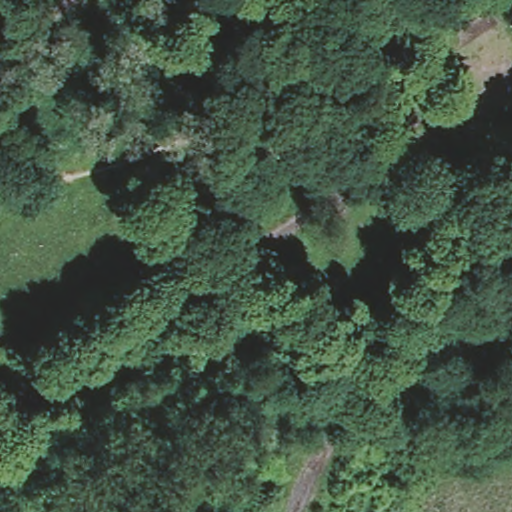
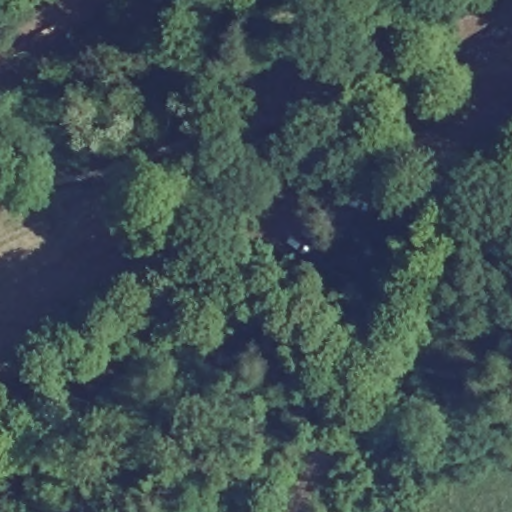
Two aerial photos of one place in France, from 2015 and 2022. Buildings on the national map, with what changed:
unchanged [(491,23),(431,58),(410,24),(457,0),(475,0),(491,23)]

